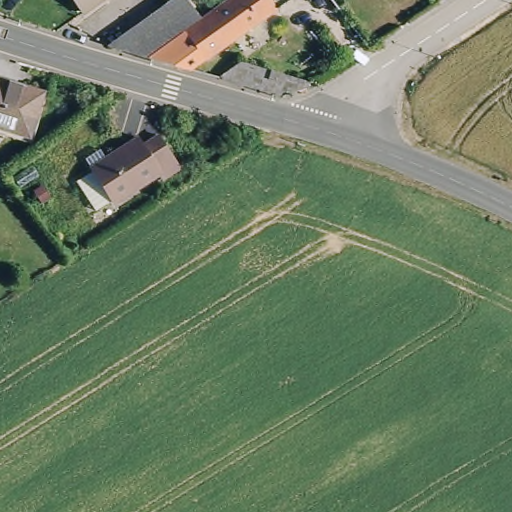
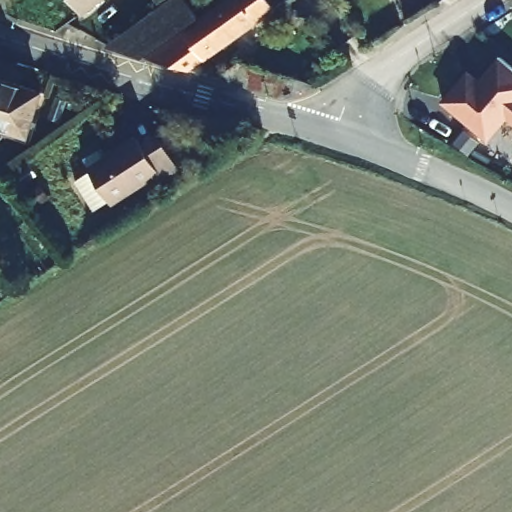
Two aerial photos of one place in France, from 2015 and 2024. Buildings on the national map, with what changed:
unchanged [(46,9),(59,0),(105,0),(62,30),(46,9)]
unchanged [(137,62),(102,51),(162,9),(156,0),(178,0),(195,23),(137,62)]
unchanged [(142,64),(231,0),(289,0),(183,76),(142,64)]
unchanged [(335,16),(318,30),(294,0),(323,0),(335,16)]
new [(469,75),(486,90),(494,81),(488,76),(503,59),(512,66),(512,122),(510,120),(490,144),(445,105),(469,75)]
unchanged [(239,61),(312,85),(280,96),(217,79),(239,61)]
unchanged [(27,135),(0,126),(0,79),(41,92),(27,135)]
unchanged [(178,169),(160,181),(157,177),(113,206),(110,201),(95,211),(76,180),(91,171),(83,160),(99,150),(105,159),(137,137),(142,145),(156,136),(178,169)]

